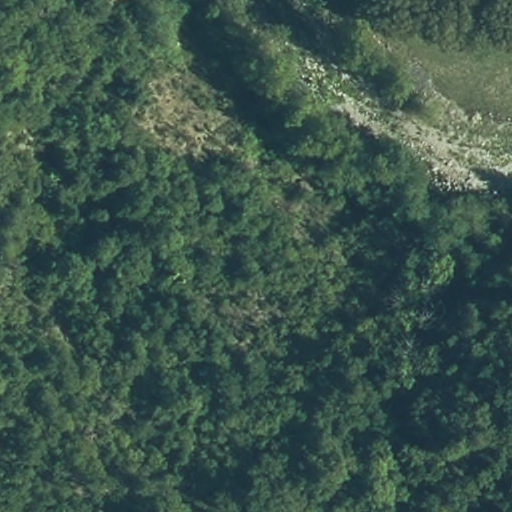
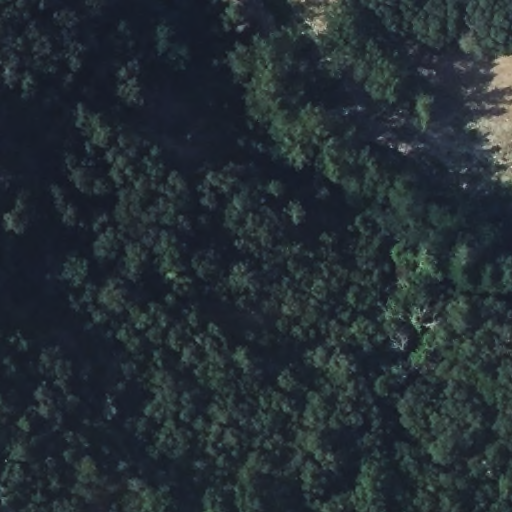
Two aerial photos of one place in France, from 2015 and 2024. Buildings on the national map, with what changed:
[]

